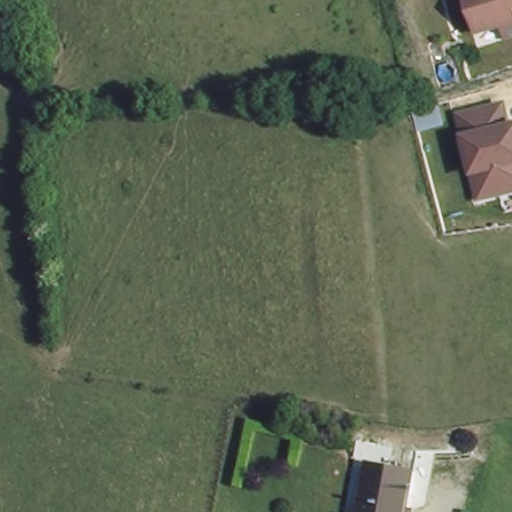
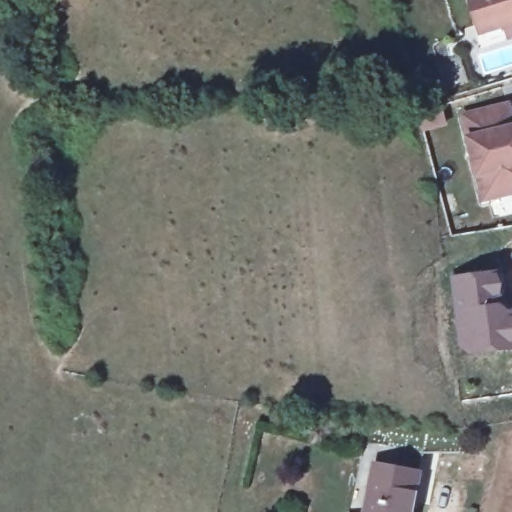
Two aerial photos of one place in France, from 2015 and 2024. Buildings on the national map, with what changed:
unchanged [(506,37),(502,26),(478,34),(464,0),(512,0),(512,35),(506,37)]
unchanged [(512,104),(512,189),(481,194),(469,110),(512,104)]
new [(498,268),(500,286),(512,284),(512,342),(463,348),(455,272),(498,268)]
unchanged [(369,470),(416,478),(408,512),(362,512),(369,470)]

